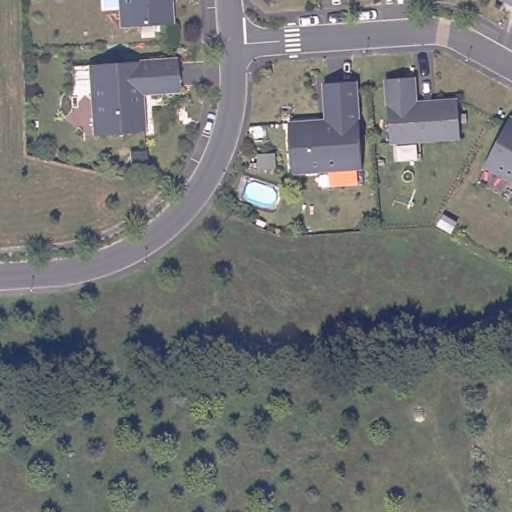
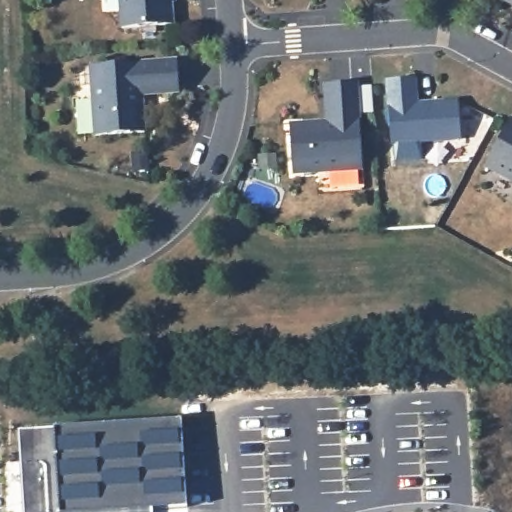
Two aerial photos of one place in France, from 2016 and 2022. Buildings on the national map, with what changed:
unchanged [(170,1),(172,25),(120,28),(118,0),(173,0),(174,1),(170,1)]
unchanged [(502,0),(512,0),(512,6),(502,0)]
unchanged [(176,61),(177,93),(141,95),(144,133),(94,136),(89,66),(176,61)]
unchanged [(356,83),(362,169),(292,174),(288,124),(326,121),(323,85),(356,83)]
unchanged [(413,84),(416,109),(457,106),(460,144),(390,149),(386,86),(413,84)]
unchanged [(483,166),(510,118),(512,119),(512,182),(483,166)]
new [(52,425),(180,418),(185,508),(149,510),(149,512),(21,512),(16,427),(52,425)]

